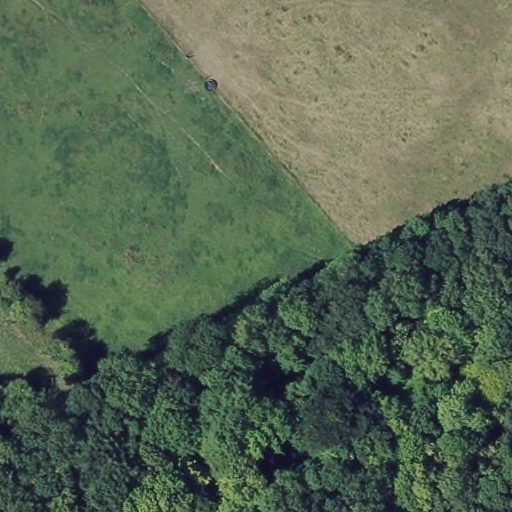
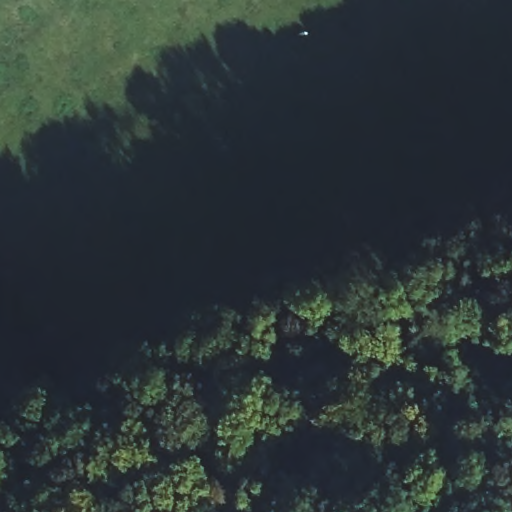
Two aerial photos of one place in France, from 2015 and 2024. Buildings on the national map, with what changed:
[]

